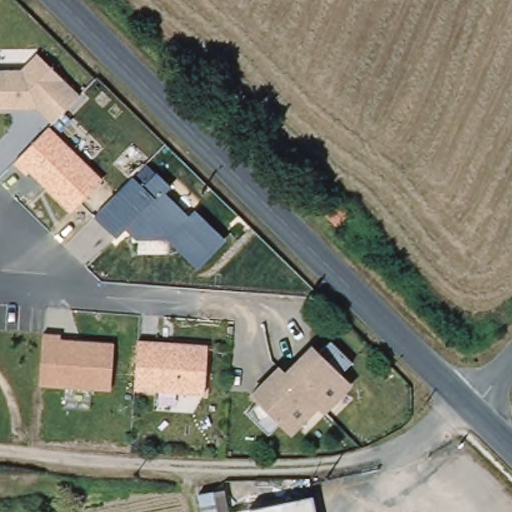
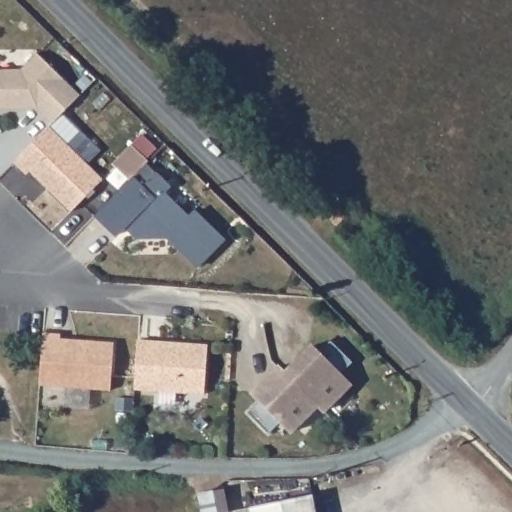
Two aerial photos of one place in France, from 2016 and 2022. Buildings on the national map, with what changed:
unchanged [(51,123),(34,106),(0,107),(0,69),(20,69),(36,54),(80,99),(51,123)]
unchanged [(69,213),(16,162),(50,128),(100,180),(69,213)]
unchanged [(196,269),(169,242),(135,241),(122,229),(113,239),(96,221),(135,179),(140,183),(158,170),(174,186),(167,192),(191,217),(195,210),(225,240),(196,269)]
unchanged [(338,197),(352,211),(338,225),(322,210),(338,197)]
unchanged [(41,384),(44,337),(112,340),(111,389),(41,384)]
unchanged [(135,390),(138,343),(207,348),(205,395),(135,390)]
unchanged [(290,438),(247,394),(280,360),(288,370),(313,344),(350,387),(290,438)]
unchanged [(319,512),(255,512),(318,503),(319,512)]

